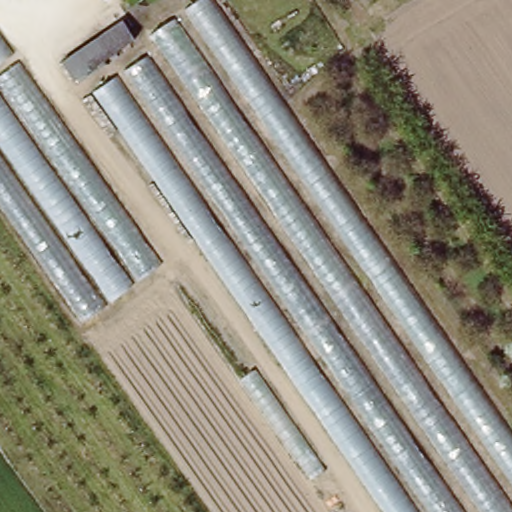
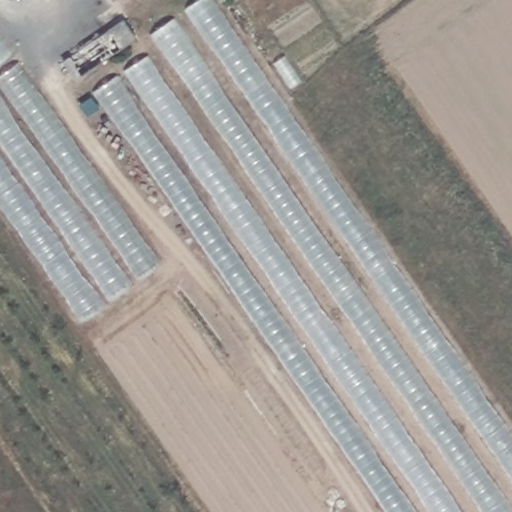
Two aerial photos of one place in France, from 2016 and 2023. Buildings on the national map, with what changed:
unchanged [(163,58),(150,36),(200,0),(211,0),(512,441),(512,512),(386,512),(100,98),(163,58)]
unchanged [(80,97),(55,60),(120,21),(137,44),(110,56),(118,76),(80,97)]
unchanged [(77,331),(0,220),(0,42),(158,267),(77,331)]

